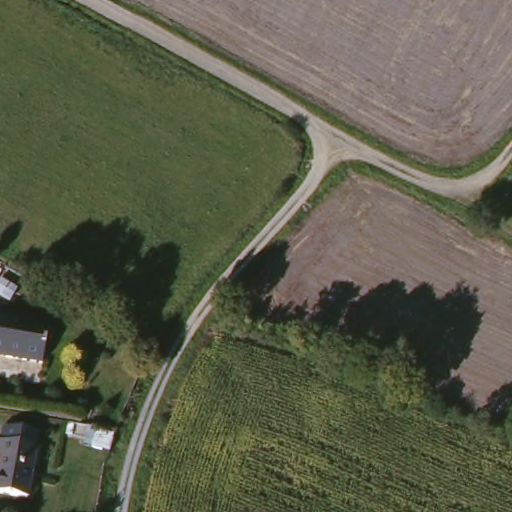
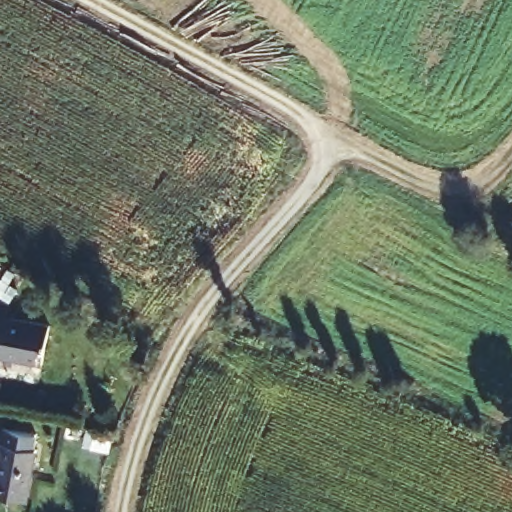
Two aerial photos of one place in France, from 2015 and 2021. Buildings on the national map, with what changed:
unchanged [(7,307),(0,303),(0,287),(14,294),(7,307)]
unchanged [(45,362),(0,357),(0,311),(50,315),(45,362)]
unchanged [(112,447),(96,443),(99,429),(116,431),(112,447)]
unchanged [(23,507),(0,503),(0,432),(31,437),(29,452),(31,452),(23,507)]

